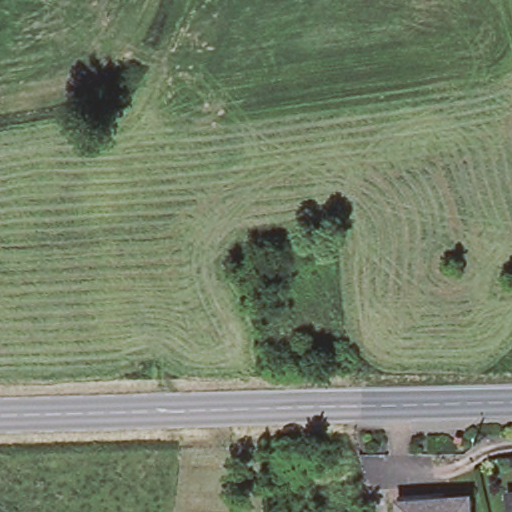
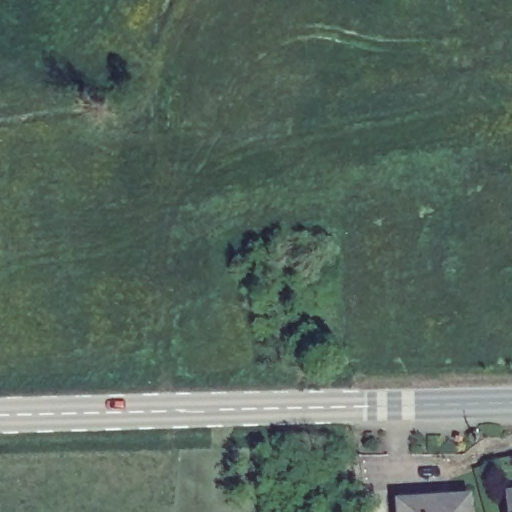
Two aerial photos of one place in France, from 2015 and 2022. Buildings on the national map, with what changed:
unchanged [(394,501),(468,494),(469,512),(395,512),(394,501)]
unchanged [(507,494),(512,494),(512,512),(508,512),(507,494)]

